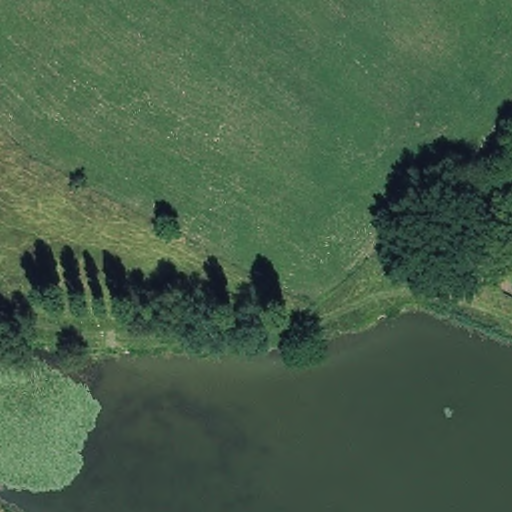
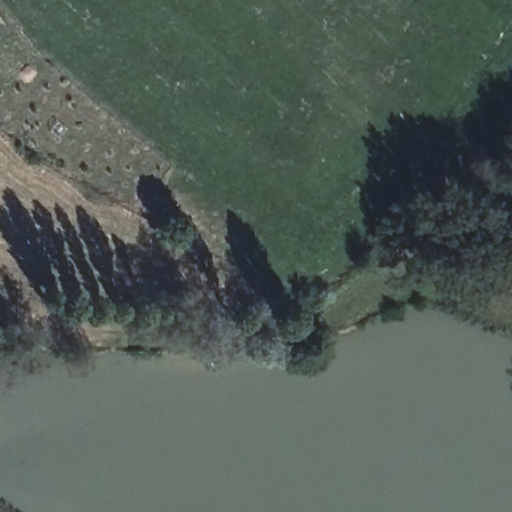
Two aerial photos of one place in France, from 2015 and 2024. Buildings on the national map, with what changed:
[]

